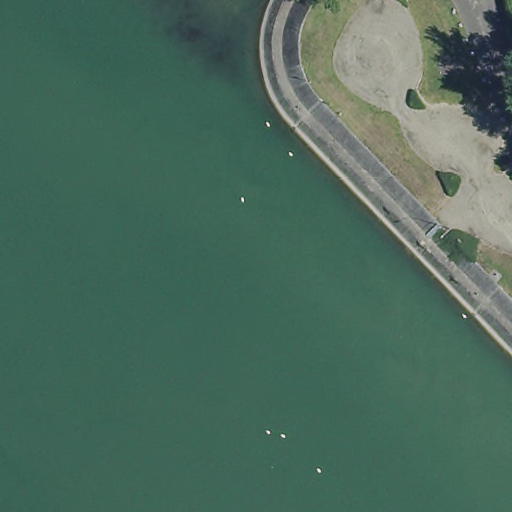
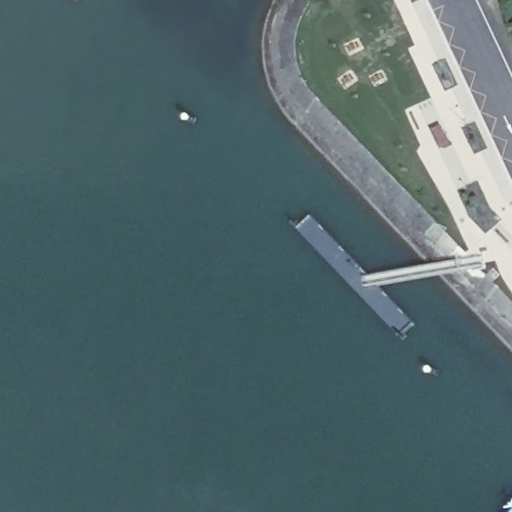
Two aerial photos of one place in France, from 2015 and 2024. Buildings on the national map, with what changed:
[]

